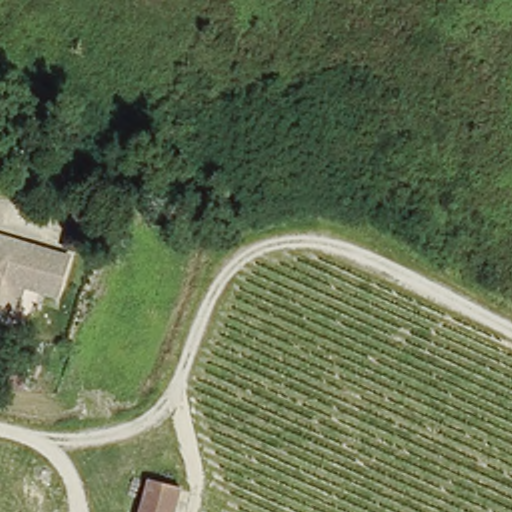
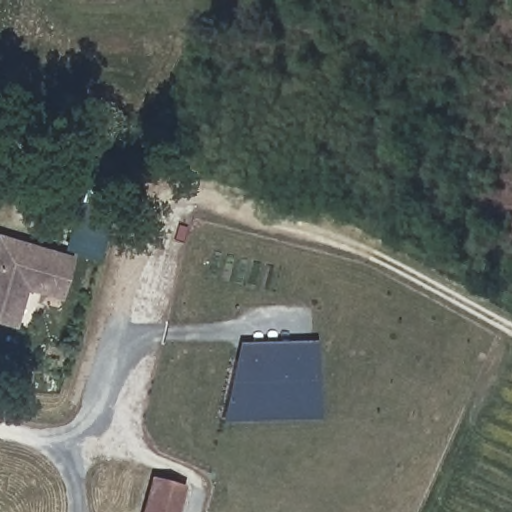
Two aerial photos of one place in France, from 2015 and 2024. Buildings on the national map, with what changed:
unchanged [(0,236),(1,235),(72,258),(59,296),(26,285),(18,309),(14,322),(0,318),(0,236)]
new [(236,343),(315,341),(316,422),(219,425),(236,343)]
unchanged [(176,512),(140,512),(151,473),(183,484),(176,512)]

